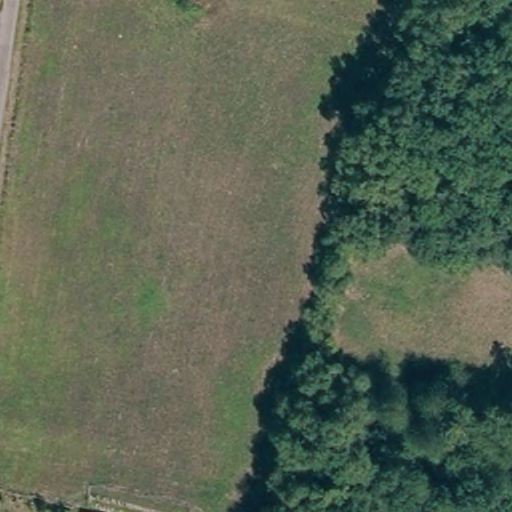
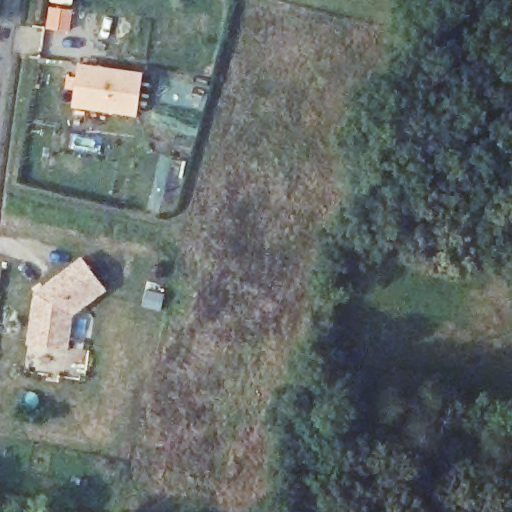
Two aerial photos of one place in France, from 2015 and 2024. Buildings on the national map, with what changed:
new [(71,106),(78,63),(141,73),(136,116),(71,106)]
new [(106,291),(72,315),(68,348),(26,344),(34,291),(80,255),(106,291)]
unchanged [(92,512),(88,512),(88,511),(92,512)]

